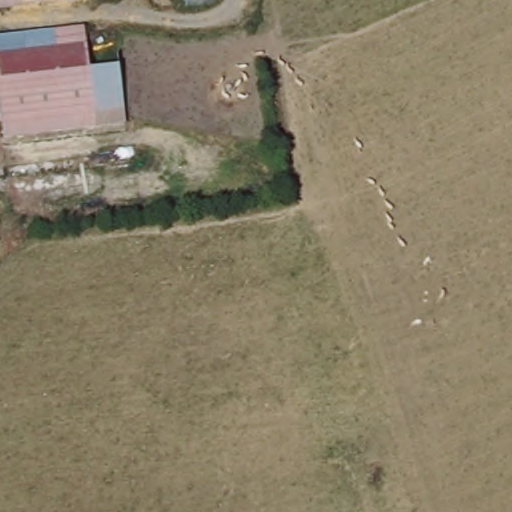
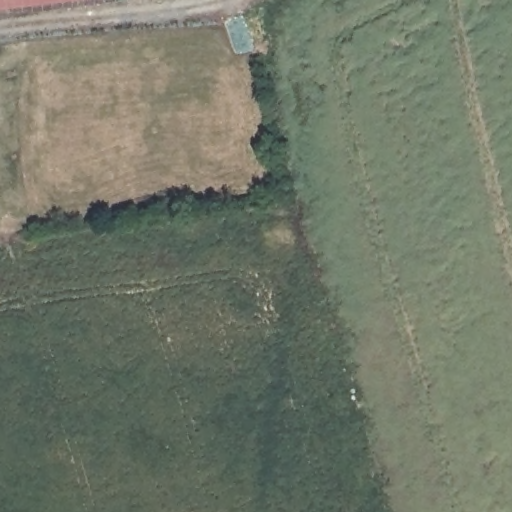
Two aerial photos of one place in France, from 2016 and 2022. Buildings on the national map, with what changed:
unchanged [(0,0),(39,0),(0,5),(0,0)]
demolished [(0,32),(84,24),(90,64),(95,107),(2,118),(0,100),(0,32)]

